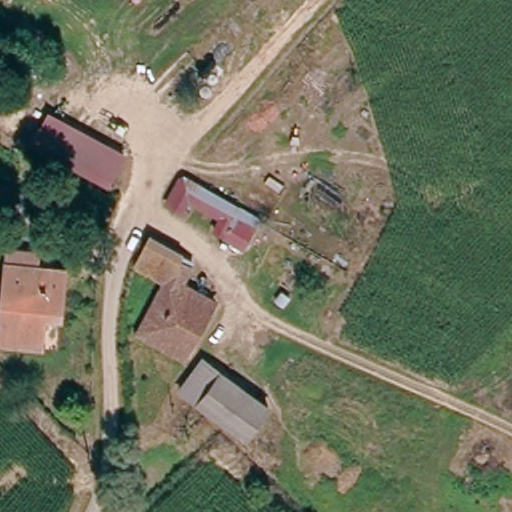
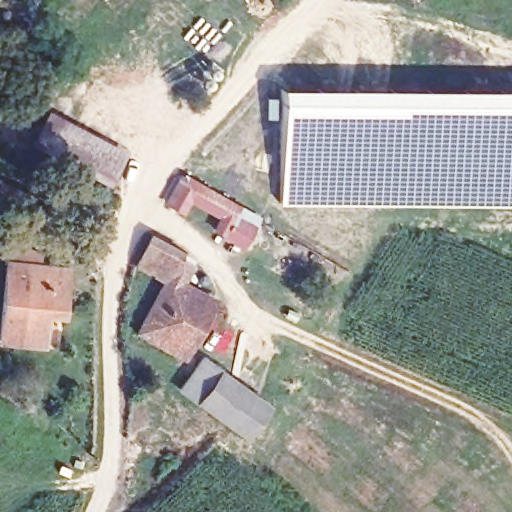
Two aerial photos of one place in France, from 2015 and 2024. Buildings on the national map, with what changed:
new [(280,87),(512,89),(512,206),(279,204),(280,87)]
unchanged [(116,188),(58,156),(73,124),(129,152),(116,188)]
unchanged [(254,219),(241,244),(209,226),(217,210),(188,195),(181,210),(162,200),(175,176),(254,219)]
unchanged [(175,257),(173,262),(162,281),(131,265),(144,239),(175,257)]
unchanged [(0,262),(56,267),(53,308),(39,306),(37,341),(0,338),(0,272),(0,262)]
unchanged [(188,271),(180,286),(211,304),(180,359),(134,334),(162,281),(173,262),(188,271)]
new [(246,440),(194,402),(176,390),(201,356),(221,369),(271,406),(246,440)]
demolished [(223,378),(258,403),(237,432),(218,418),(202,407),(216,388),(223,378)]

